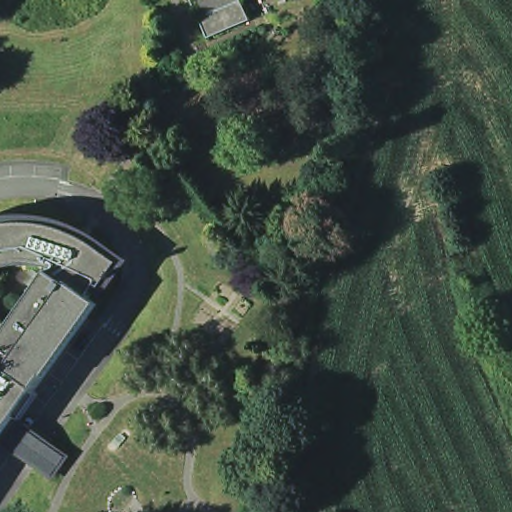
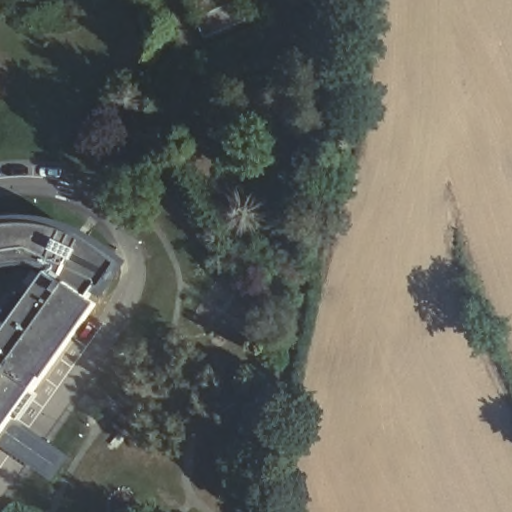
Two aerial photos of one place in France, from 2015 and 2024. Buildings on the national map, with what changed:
unchanged [(246,21),(205,39),(187,0),(237,0),(246,21)]
unchanged [(17,213),(41,212),(64,218),(88,227),(108,239),(129,258),(98,301),(46,373),(43,373),(0,432),(0,324),(6,329),(50,269),(50,264),(36,261),(17,260),(0,263),(0,216),(17,213)]

